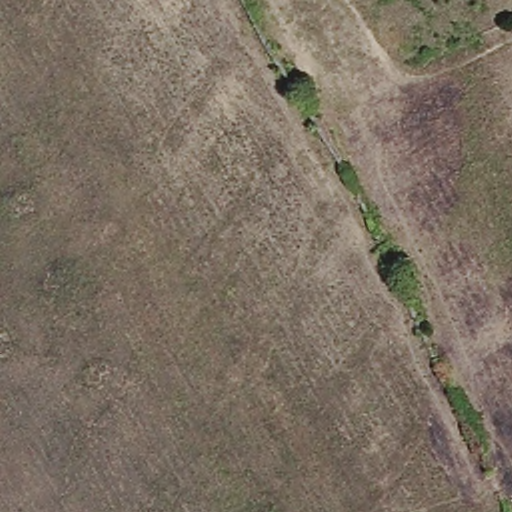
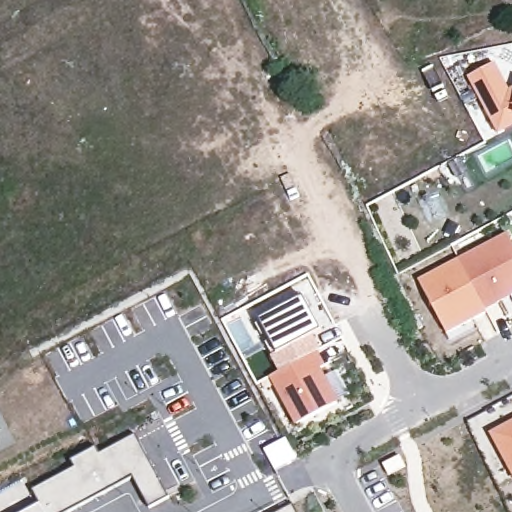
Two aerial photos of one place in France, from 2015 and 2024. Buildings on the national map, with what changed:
new [(496,63),(509,90),(512,88),(512,127),(498,134),(469,78),(496,63)]
new [(508,233),(512,240),(512,297),(486,311),(488,314),(448,334),(419,280),(508,233)]
new [(304,297),(323,332),(314,336),(321,351),(317,354),(279,374),(271,358),(278,354),(261,321),(304,297)]
new [(279,374),(317,354),(324,367),(320,369),(339,404),(299,425),(273,377),(279,374)]
new [(489,432),(512,420),(512,473),(489,432)]
new [(151,509),(133,478),(70,512),(28,512),(40,506),(33,490),(75,468),(71,461),(97,448),(101,455),(136,435),(171,498),(151,509)]
new [(285,436),(297,457),(276,468),(264,447),(285,436)]
new [(399,455),(404,465),(387,473),(382,464),(399,455)]
new [(298,512),(280,512),(294,505),(298,512)]

